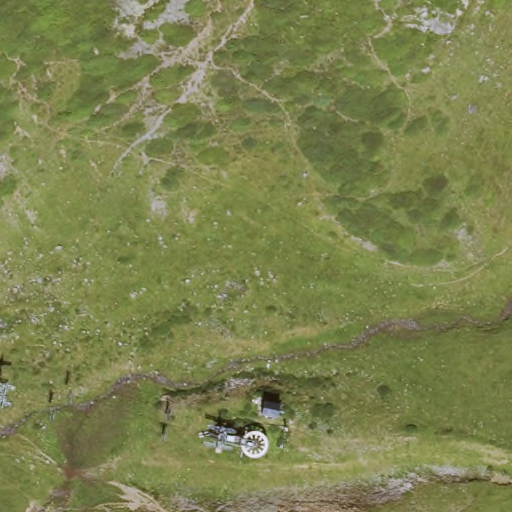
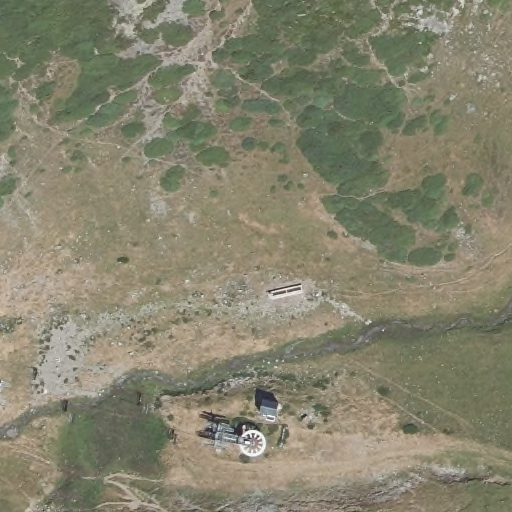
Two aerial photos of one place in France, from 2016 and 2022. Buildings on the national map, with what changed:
unchanged [(230,423),(235,425),(239,429),(240,433),(245,434),(247,431),(255,428),(261,429),(268,432),(272,435),(272,450),(268,454),(260,458),(255,457),(249,454),(245,450),(245,444),(238,444),(231,448),(225,449),(216,448),(218,435),(220,421),(230,423)]

